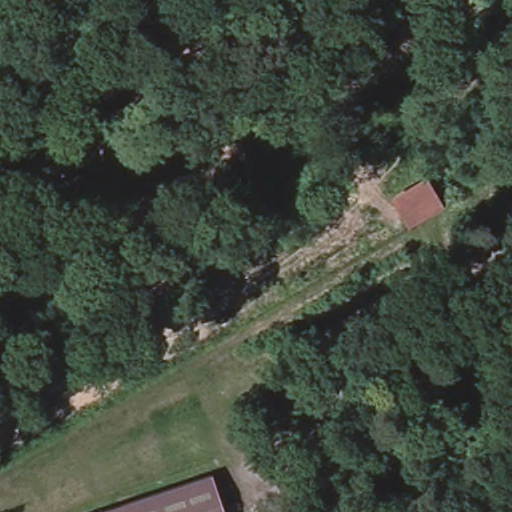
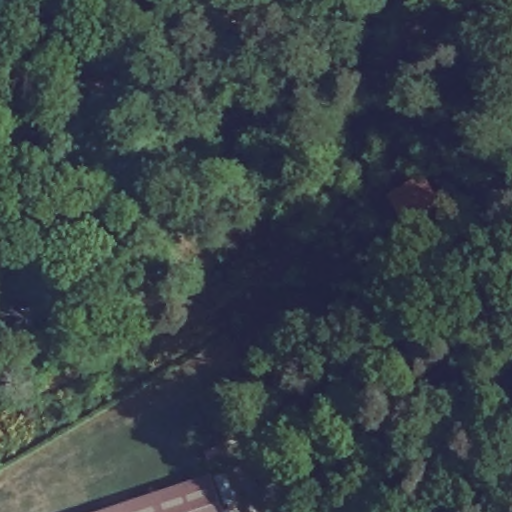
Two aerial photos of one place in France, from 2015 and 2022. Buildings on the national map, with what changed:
unchanged [(397,220),(382,196),(430,169),(444,192),(397,220)]
unchanged [(210,470),(222,512),(82,512),(210,470)]

